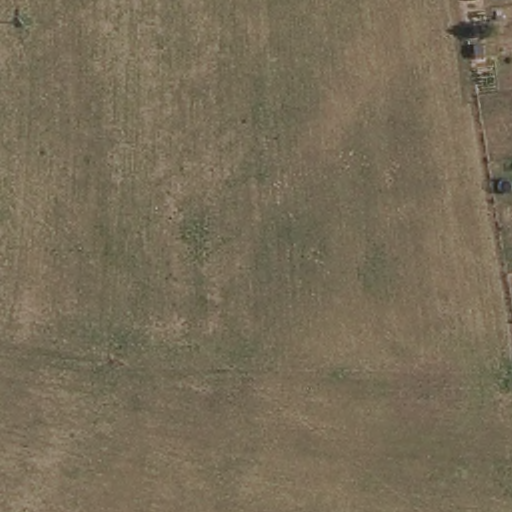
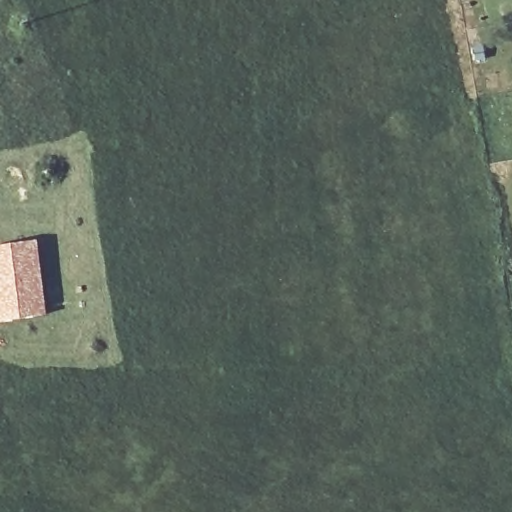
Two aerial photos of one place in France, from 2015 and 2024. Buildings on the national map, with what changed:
new [(46,316),(0,323),(0,245),(36,240),(46,316)]

